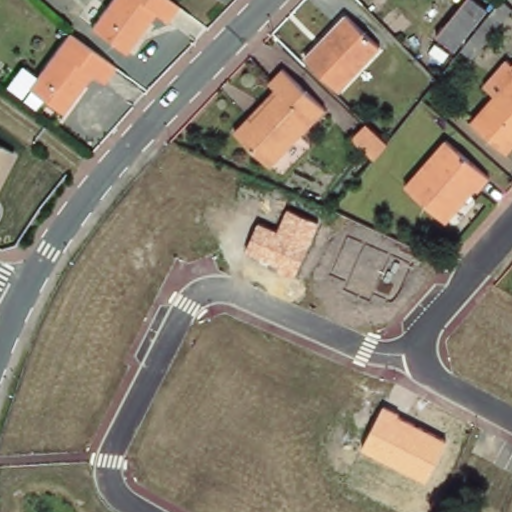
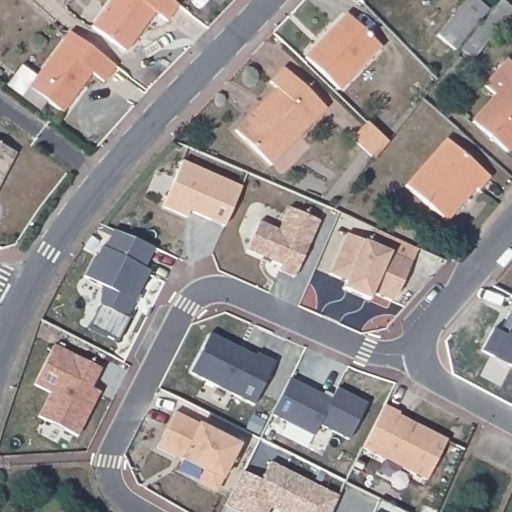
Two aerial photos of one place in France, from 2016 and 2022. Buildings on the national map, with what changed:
unchanged [(179,6),(167,21),(155,12),(125,52),(91,27),(111,0),(170,0),(179,6)]
unchanged [(490,9),(456,50),(438,36),(468,0),(478,0),(490,9)]
unchanged [(376,46),(336,90),(302,58),(343,15),(376,46)]
unchanged [(115,65),(103,82),(91,75),(62,113),(27,87),(69,32),(115,65)]
unchanged [(268,84),(281,70),(323,110),(270,166),(232,131),(247,117),(250,120),(277,92),(268,84)]
unchanged [(472,121),(512,77),(512,148),(507,154),(472,121)]
unchanged [(387,145),(373,162),(354,145),(368,130),(387,145)]
unchanged [(489,179),(477,193),(475,190),(447,224),(406,186),(447,140),(489,179)]
unchanged [(0,187),(0,146),(17,154),(0,187)]
new [(182,161),(241,187),(224,225),(189,210),(186,217),(162,206),(182,161)]
unchanged [(279,231),(287,208),(320,221),(295,277),(277,270),(280,263),(248,250),(258,224),(279,231)]
new [(92,257),(95,258),(101,246),(103,247),(112,230),(153,247),(143,268),(149,271),(125,317),(129,319),(117,342),(87,327),(98,305),(100,285),(82,276),(92,257)]
new [(346,233),(411,262),(398,292),(391,300),(372,292),(369,300),(342,288),(346,281),(328,273),(346,233)]
new [(237,347),(255,356),(256,353),(275,362),(253,405),(189,372),(210,333),(237,347)]
new [(77,435),(37,415),(50,391),(33,383),(53,344),(100,368),(91,387),(99,391),(92,406),(85,420),(77,435)]
new [(288,378),(330,400),(336,388),(367,404),(348,440),(319,425),(313,435),(271,414),(288,378)]
unchanged [(399,412),(397,416),(447,440),(428,480),(362,448),(384,405),(399,412)]
new [(173,412),(238,445),(215,491),(198,482),(204,470),(156,446),(173,412)]
new [(245,512),(244,511),(243,512),(240,512),(225,505),(242,470),(260,480),(270,461),(325,490),(338,495),(331,512),(278,512),(273,510),(267,506),(264,512),(245,512)]
new [(405,512),(373,512),(379,498),(405,512)]

